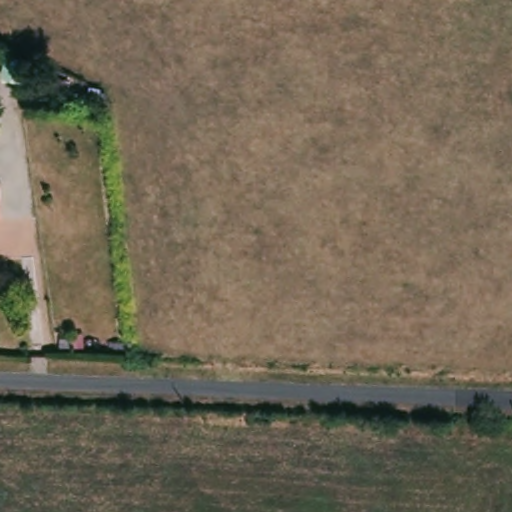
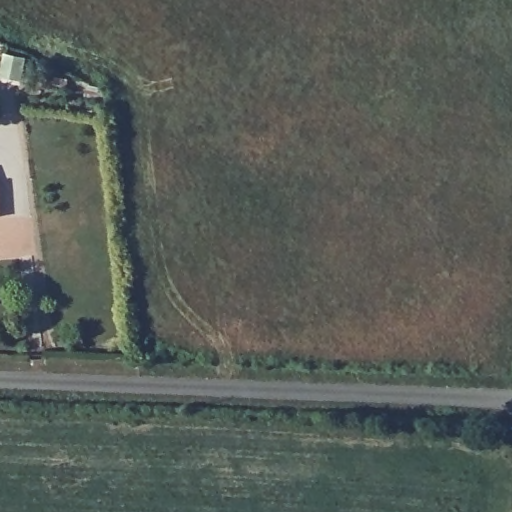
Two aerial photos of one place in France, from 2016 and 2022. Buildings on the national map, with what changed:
[]

